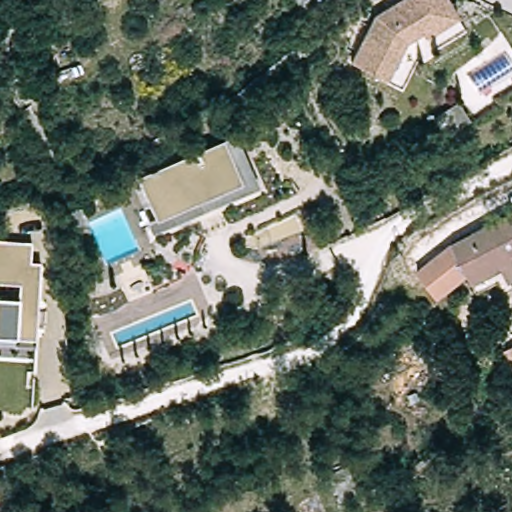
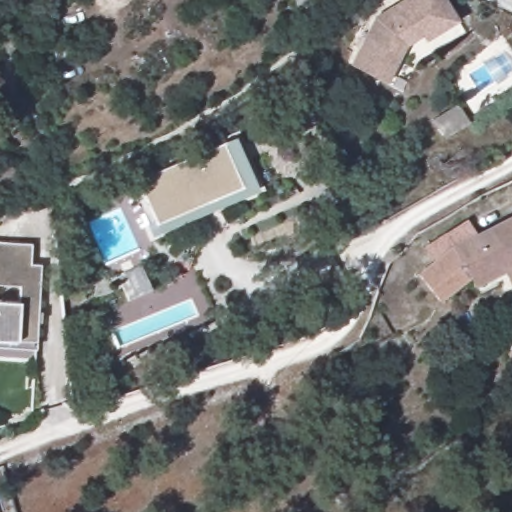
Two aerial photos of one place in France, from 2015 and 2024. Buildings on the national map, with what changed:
unchanged [(369,15),(394,0),(442,0),(454,19),(420,40),(418,35),(401,45),(382,82),(345,62),(369,15)]
unchanged [(146,185),(229,148),(248,191),(164,228),(146,185)]
unchanged [(443,250),(512,215),(512,268),(464,294),(459,282),(432,304),(429,306),(406,277),(417,270),(443,250)]
unchanged [(30,265),(40,265),(39,312),(38,343),(0,342),(0,244),(31,245),(30,265)]

